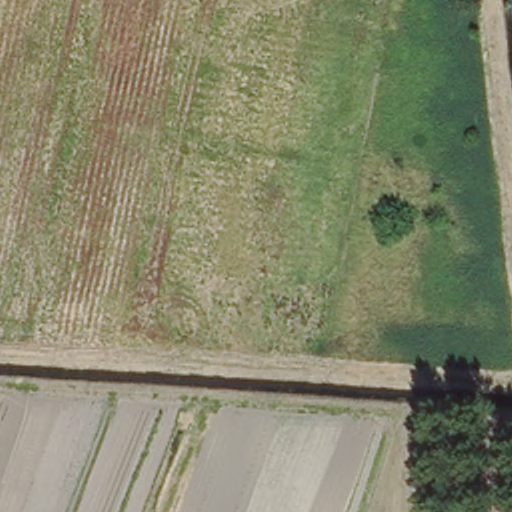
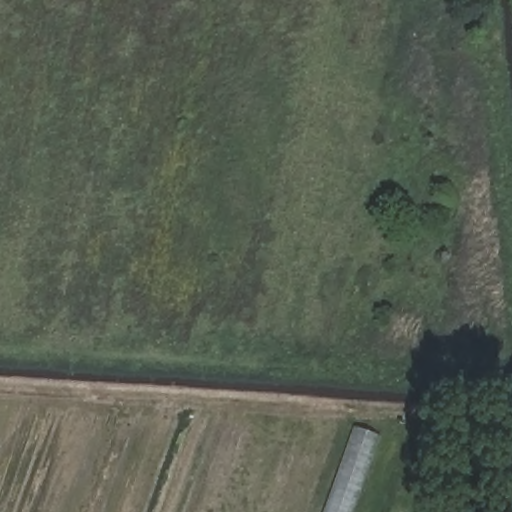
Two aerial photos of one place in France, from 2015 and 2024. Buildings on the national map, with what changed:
new [(352,512),(325,512),(356,427),(378,436),(352,512)]

